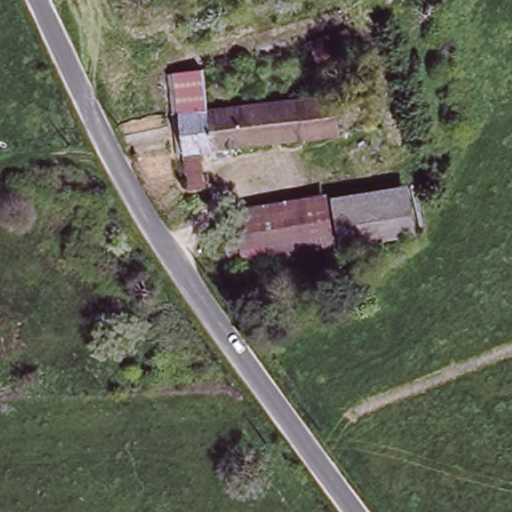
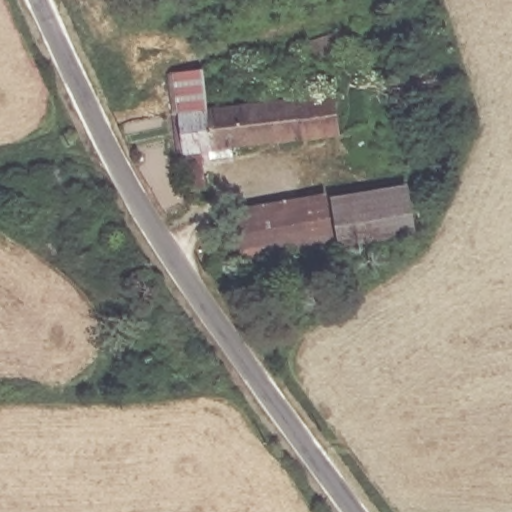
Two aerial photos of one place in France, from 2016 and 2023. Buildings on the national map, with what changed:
unchanged [(315,37),(335,29),(351,22),(358,43),(322,56),(315,37)]
unchanged [(176,115),(171,115),(165,75),(190,70),(196,112),(176,115)]
unchanged [(332,141),(333,144),(280,150),(275,102),(326,96),(332,141)]
unchanged [(196,112),(275,102),(280,150),(226,155),(227,164),(206,166),(205,158),(200,159),(203,188),(185,190),(176,115),(196,112)]
unchanged [(343,243),(335,199),(379,190),(407,185),(417,232),(367,239),(343,243)]
unchanged [(245,235),(241,217),(326,201),(334,245),(251,260),(234,262),(230,237),(245,235)]

